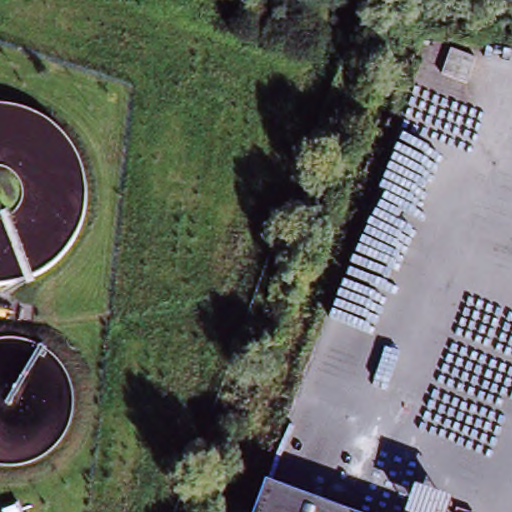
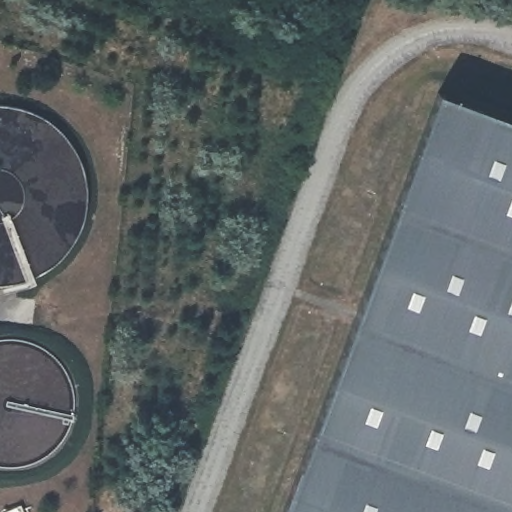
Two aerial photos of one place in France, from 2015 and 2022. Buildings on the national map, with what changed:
new [(512,512),(279,512),(434,88),(512,118),(512,512)]
demolished [(331,512),(248,512),(257,486),(331,512)]

